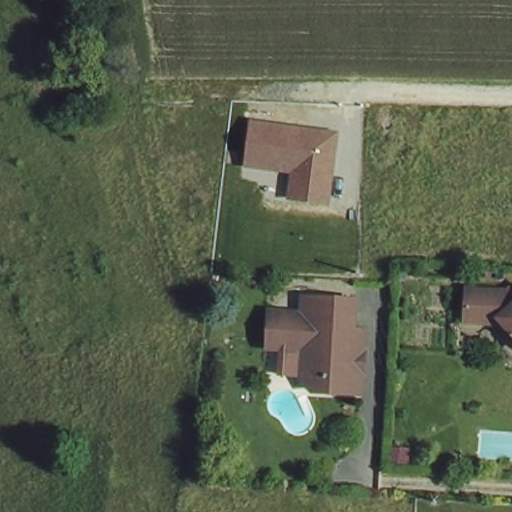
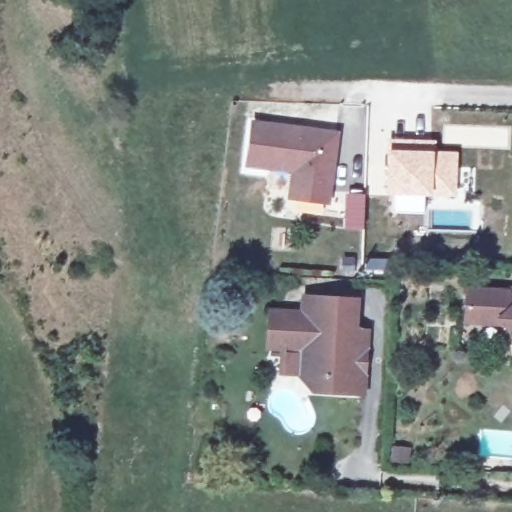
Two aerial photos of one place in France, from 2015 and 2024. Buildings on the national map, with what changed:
unchanged [(250,120),(339,131),(331,207),(286,200),(289,174),(244,167),(250,120)]
new [(430,197),(383,194),(385,149),(386,139),(435,140),(434,152),(457,152),(454,196),(430,197)]
unchanged [(465,325),(462,292),(504,292),(512,303),(512,343),(495,324),(465,325)]
unchanged [(363,400),(308,397),(293,376),(295,355),(262,353),(264,314),(297,314),(299,298),(355,302),(355,332),(370,332),(363,400)]

